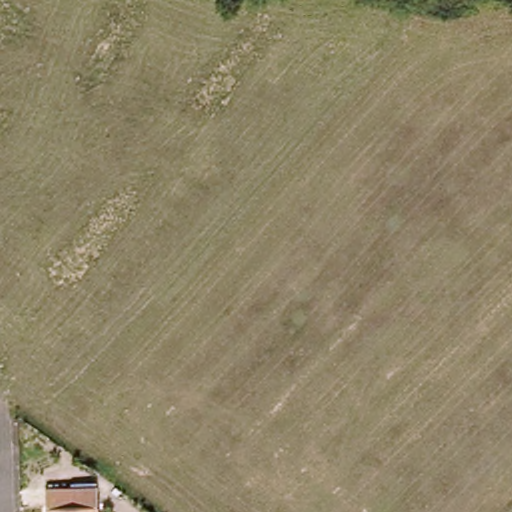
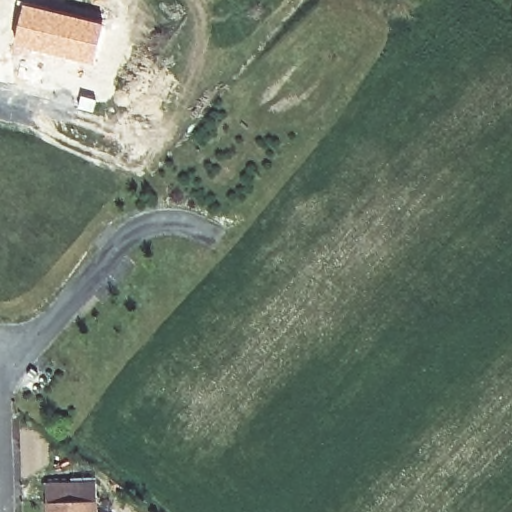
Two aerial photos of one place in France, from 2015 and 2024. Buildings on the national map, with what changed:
new [(24,3),(104,23),(93,65),(14,44),(24,3)]
unchanged [(56,512),(56,491),(104,492),(103,512),(56,512)]

